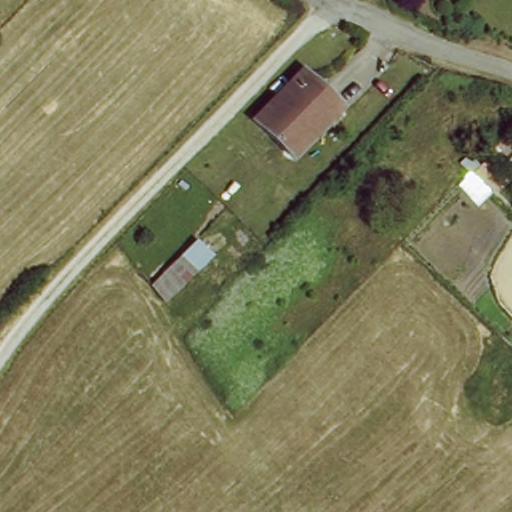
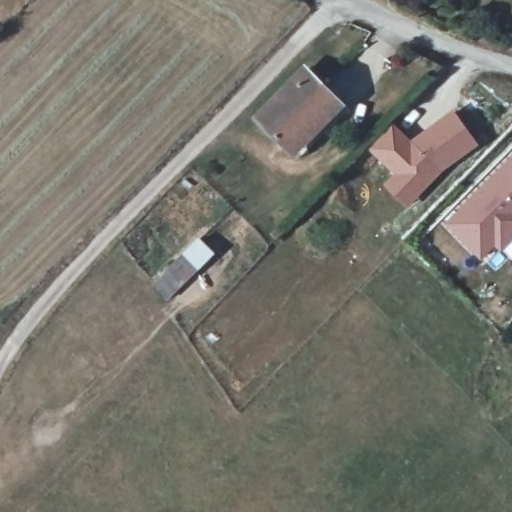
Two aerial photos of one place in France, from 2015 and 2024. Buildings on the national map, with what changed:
unchanged [(349,108),(298,156),(260,117),(310,70),(349,108)]
new [(394,122),(411,139),(453,108),(481,144),(443,173),(407,208),(383,184),(393,173),(368,148),(394,122)]
new [(482,257),(449,224),(512,161),(512,239),(502,249),(496,243),(482,257)]
unchanged [(165,300),(151,285),(200,240),(215,256),(165,300)]

